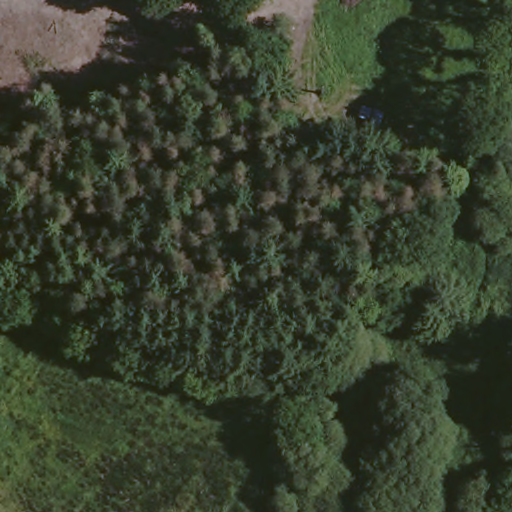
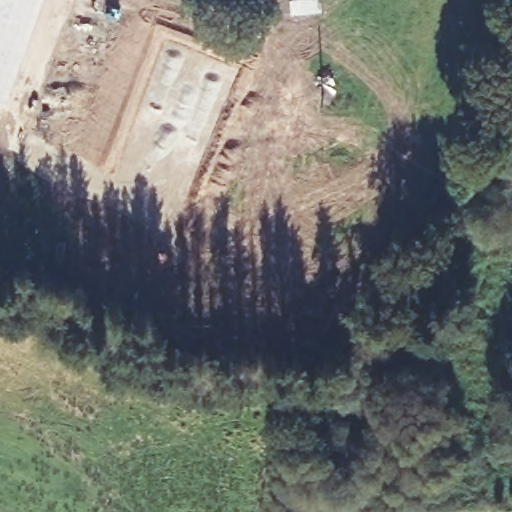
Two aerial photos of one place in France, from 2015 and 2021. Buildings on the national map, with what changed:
new [(40,0),(6,93),(0,91),(0,0),(40,0)]

